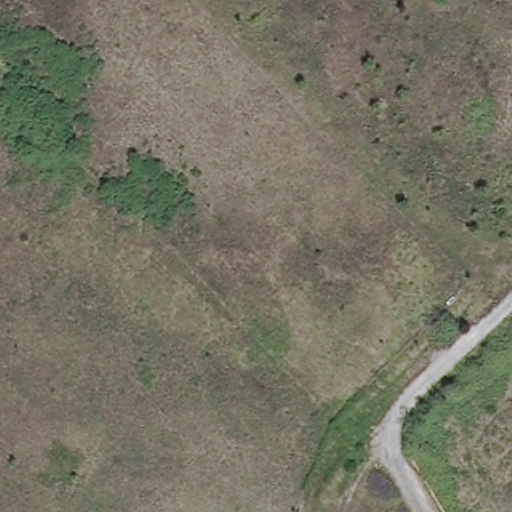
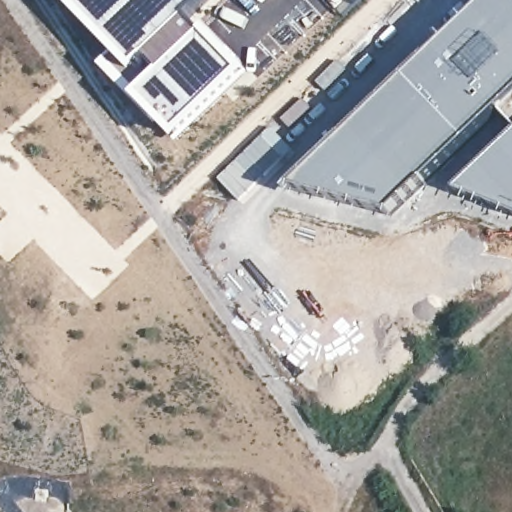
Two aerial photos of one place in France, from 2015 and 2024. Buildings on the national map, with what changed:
new [(76,0),(206,0),(191,17),(131,78),(112,57),(67,9),(76,0)]
new [(380,106),(488,0),(512,0),(512,103),(501,115),(498,113),(400,203),(387,216),(292,190),(307,174),(380,106)]
new [(353,5),(349,0),(358,0),(353,5)]
new [(112,57),(131,78),(191,17),(248,71),(213,104),(175,143),(100,69),(112,57)]
new [(512,125),(501,115),(512,103),(512,125)]
new [(271,128),(291,150),(238,201),(217,180),(271,128)]
new [(512,133),(512,215),(482,204),(457,192),(469,177),(512,133)]

